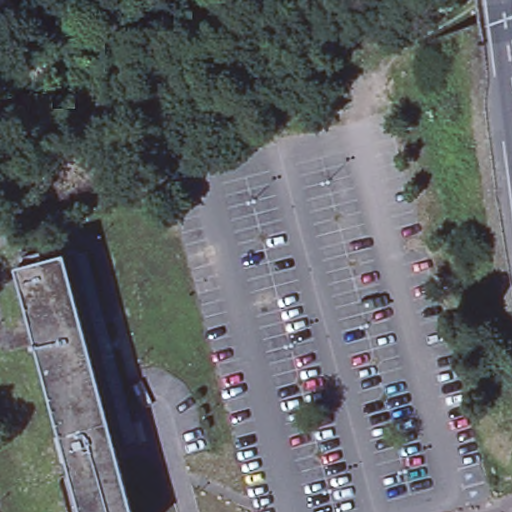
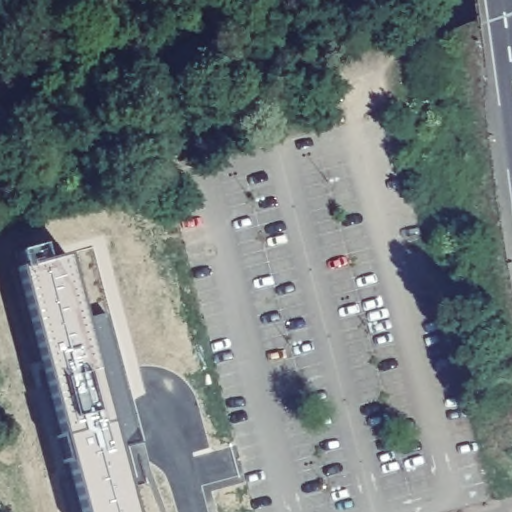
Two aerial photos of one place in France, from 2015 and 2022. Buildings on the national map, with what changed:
unchanged [(138,441),(115,447),(63,256),(88,250),(138,441)]
unchanged [(115,447),(133,512),(81,512),(67,462),(64,463),(57,438),(61,437),(15,270),(63,256),(115,447)]

